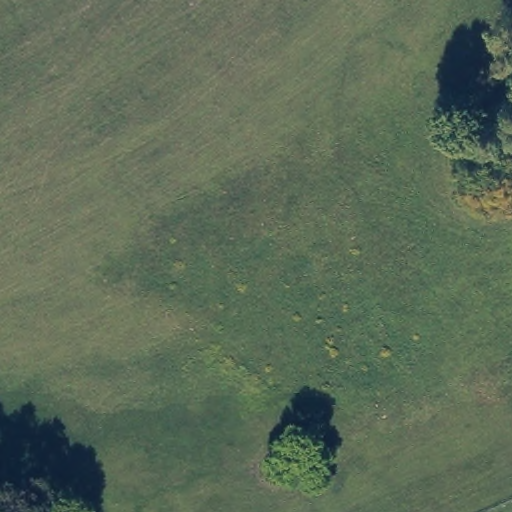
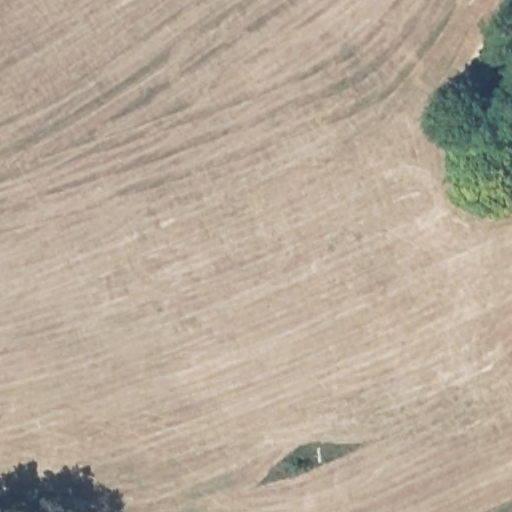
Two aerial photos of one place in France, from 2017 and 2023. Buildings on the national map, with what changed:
[]

